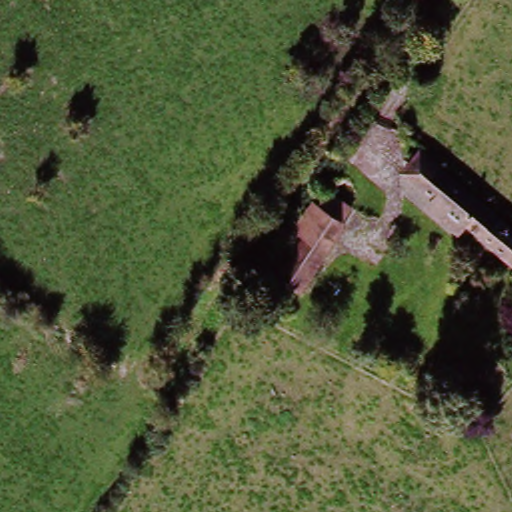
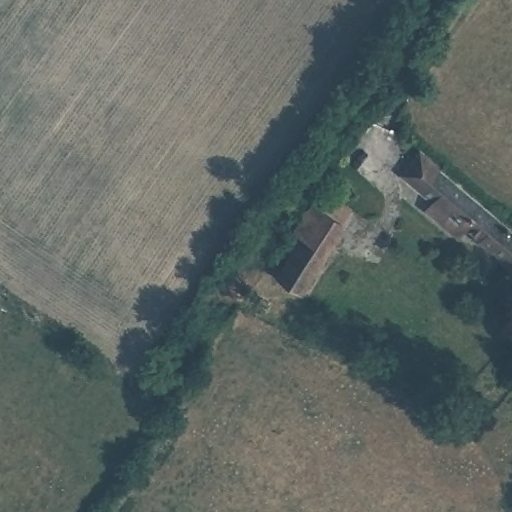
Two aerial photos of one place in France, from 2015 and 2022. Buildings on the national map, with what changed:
unchanged [(418,152),(512,229),(512,262),(400,175),(418,152)]
unchanged [(305,237),(299,231),(318,207),(345,227),(295,289),(275,273),(305,237)]

